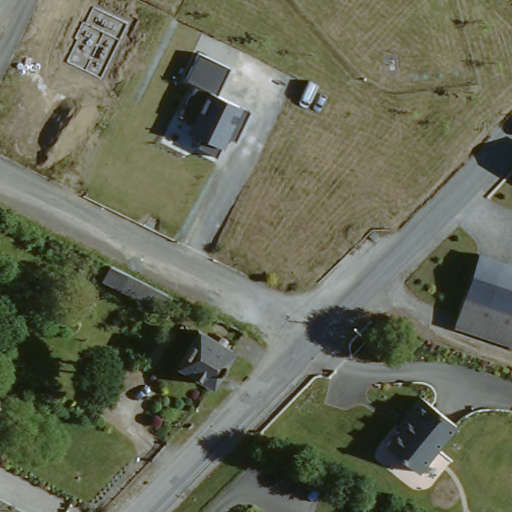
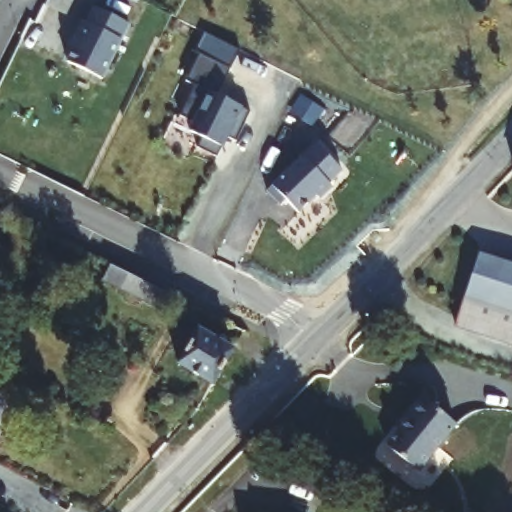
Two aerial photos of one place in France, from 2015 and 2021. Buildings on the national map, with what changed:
unchanged [(131,21),(102,79),(66,61),(77,40),(75,37),(84,19),(86,20),(95,5),(131,21)]
unchanged [(231,65),(217,95),(251,110),(237,140),(230,137),(225,148),(221,146),(217,156),(197,147),(200,137),(188,132),(192,125),(179,117),(195,84),(187,80),(200,52),(231,65)]
new [(316,145),(342,172),(328,185),(332,189),(320,201),(316,198),(298,215),(286,202),(281,207),(267,193),(316,145)]
unchanged [(482,254),(470,289),(460,316),(437,307),(457,245),(482,254)]
unchanged [(482,254),(484,249),(512,258),(512,303),(470,289),(482,254)]
unchanged [(166,312),(103,283),(111,267),(127,275),(172,296),(166,312)]
unchanged [(512,303),(512,338),(465,322),(459,320),(460,318),(460,316),(470,289),(512,303)]
unchanged [(179,366),(201,331),(234,351),(214,386),(179,366)]
unchanged [(411,413),(408,410),(422,395),(457,423),(418,469),(387,443),(411,413)]

